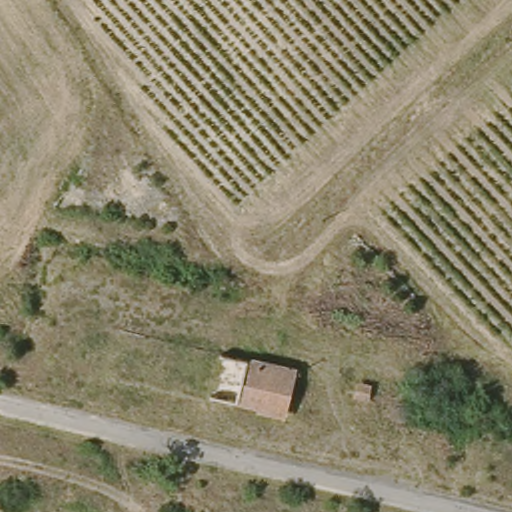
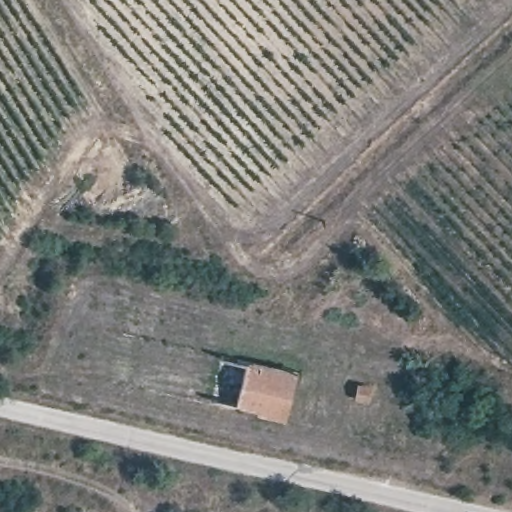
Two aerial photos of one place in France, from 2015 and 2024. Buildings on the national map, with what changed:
unchanged [(293,408),(245,397),(244,402),(213,394),(225,347),(303,366),(293,408)]
unchanged [(383,379),(378,407),(350,401),(355,373),(383,379)]

